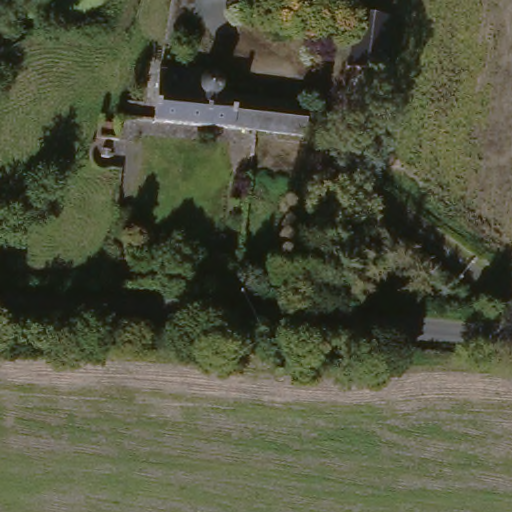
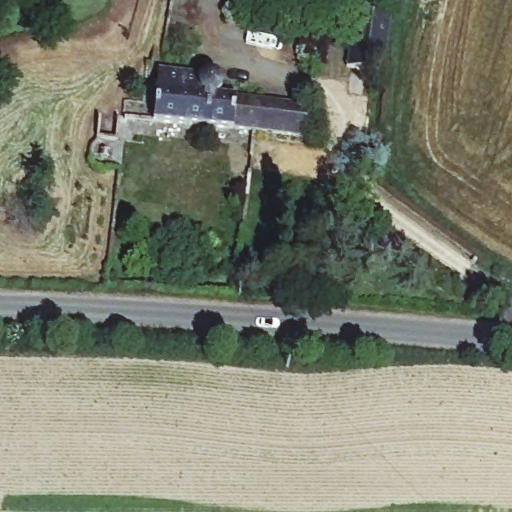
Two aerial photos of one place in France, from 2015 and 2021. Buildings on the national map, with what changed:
unchanged [(345,59),(353,7),(396,15),(388,63),(345,59)]
unchanged [(223,127),(152,120),(157,63),(227,69),(225,92),(314,102),(310,135),(223,127)]

